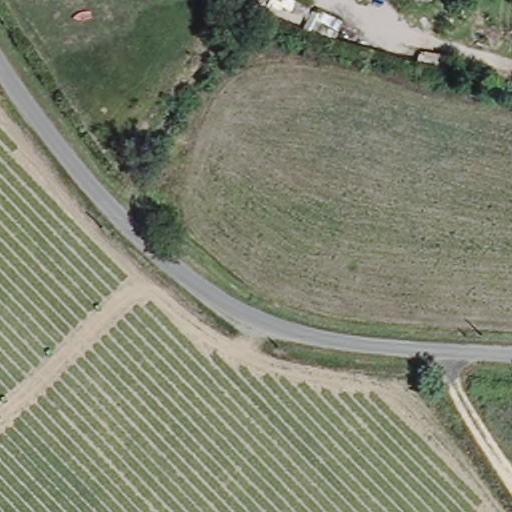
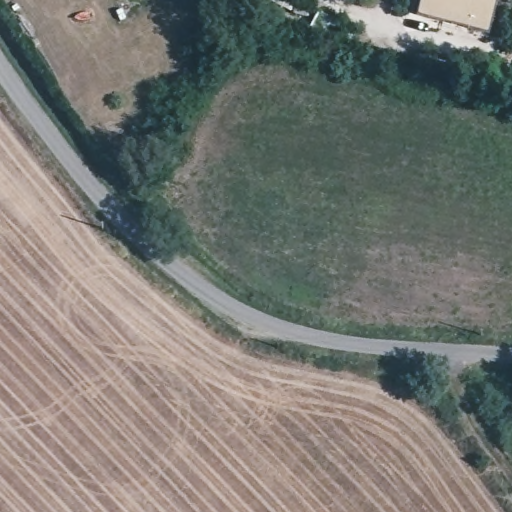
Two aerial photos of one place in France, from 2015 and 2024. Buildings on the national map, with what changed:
new [(487,33),(417,15),(420,0),(496,0),(487,33)]

